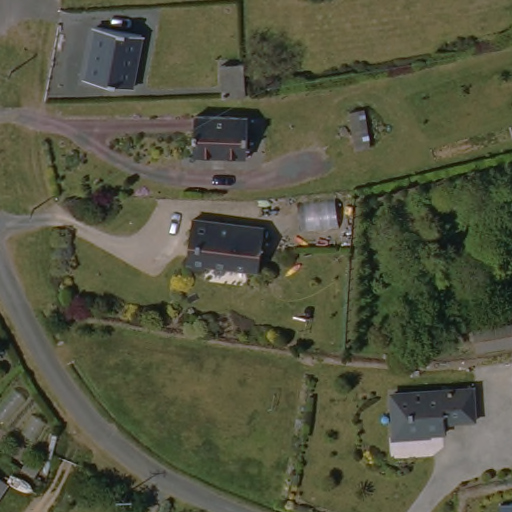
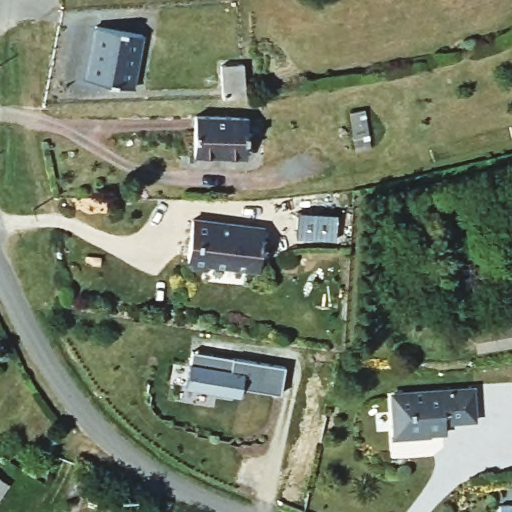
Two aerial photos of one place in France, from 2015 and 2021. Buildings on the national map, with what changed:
unchanged [(99,22),(145,30),(138,83),(92,77),(99,22)]
unchanged [(225,63),(246,63),(249,96),(224,100),(225,63)]
unchanged [(196,118),(245,114),(249,152),(201,160),(196,118)]
unchanged [(266,226),(265,243),(262,267),(218,264),(216,269),(193,265),(196,240),(199,218),(266,226)]
unchanged [(483,326),(512,327),(512,349),(481,348),(483,326)]
new [(285,366),(281,393),(242,385),(240,395),(188,385),(193,352),(285,366)]
unchanged [(474,388),(474,420),(445,421),(445,431),(416,431),(415,436),(394,437),(394,410),(397,408),(398,388),(474,388)]
unchanged [(7,478),(0,493),(0,474),(7,478)]

